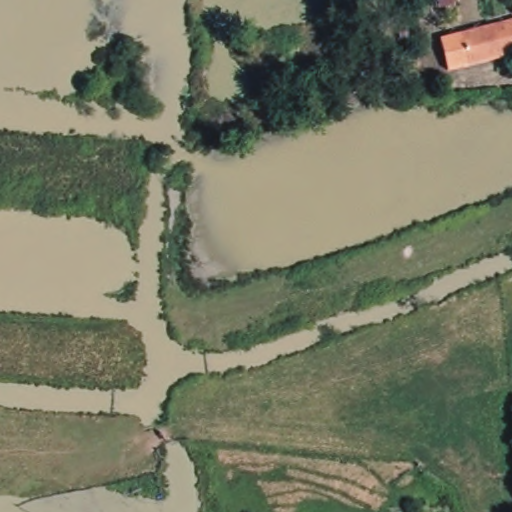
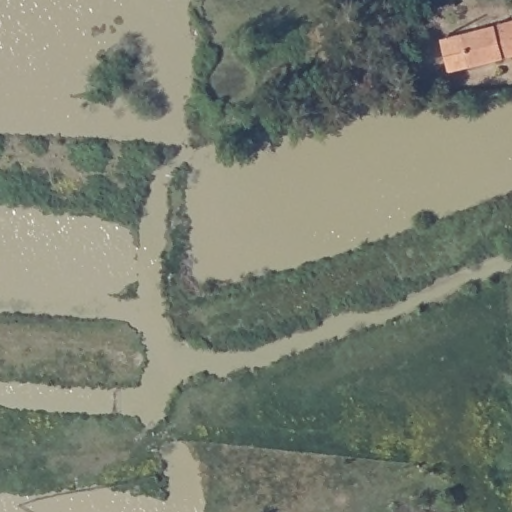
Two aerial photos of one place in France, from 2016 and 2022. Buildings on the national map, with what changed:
unchanged [(512,56),(498,59),(449,75),(440,40),(512,20),(512,56)]

